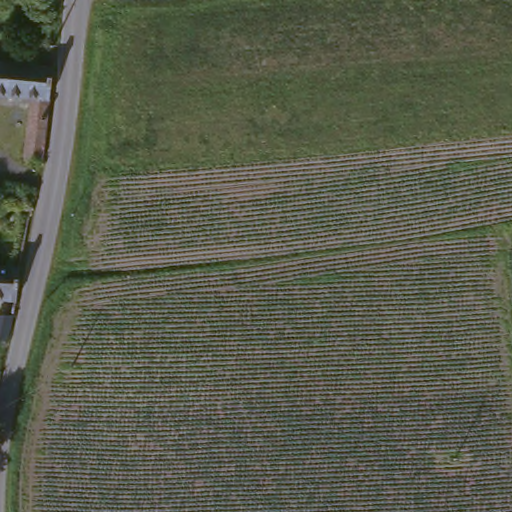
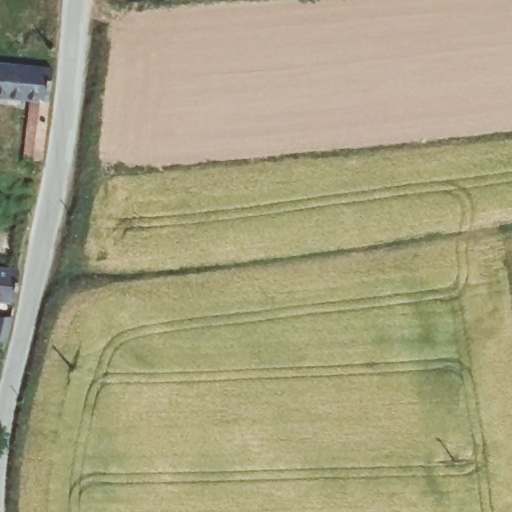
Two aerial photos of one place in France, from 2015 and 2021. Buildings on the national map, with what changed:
unchanged [(30,154),(35,97),(0,93),(0,60),(57,66),(62,65),(51,157),(44,157),(30,154)]
unchanged [(0,297),(0,263),(32,266),(28,299),(0,297)]
unchanged [(0,341),(0,317),(15,319),(9,342),(0,341)]

